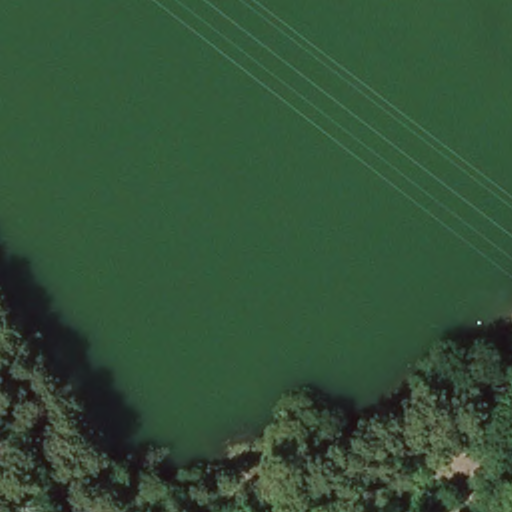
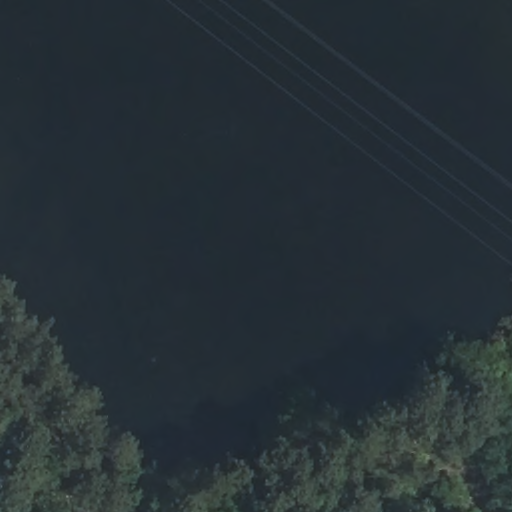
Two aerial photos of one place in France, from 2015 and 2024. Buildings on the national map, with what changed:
[]

